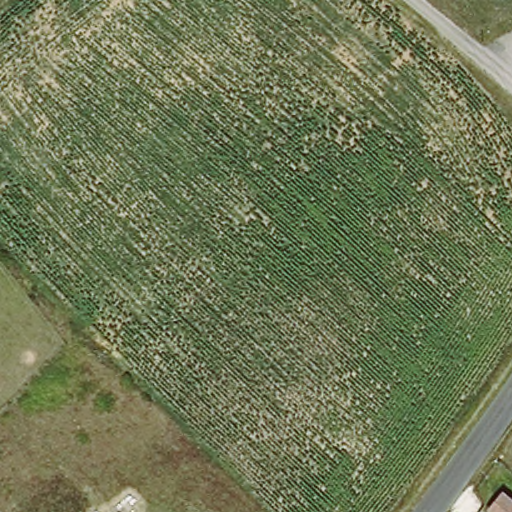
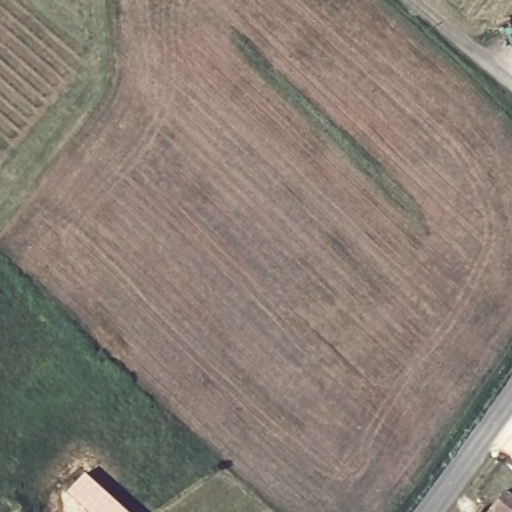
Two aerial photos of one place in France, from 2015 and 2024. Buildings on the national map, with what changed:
new [(66,493),(84,473),(126,512),(87,512),(66,493)]
unchanged [(502,490),(512,498),(512,512),(485,512),(502,490)]

